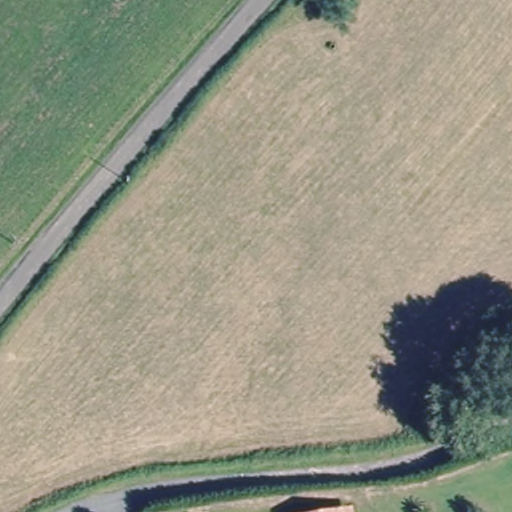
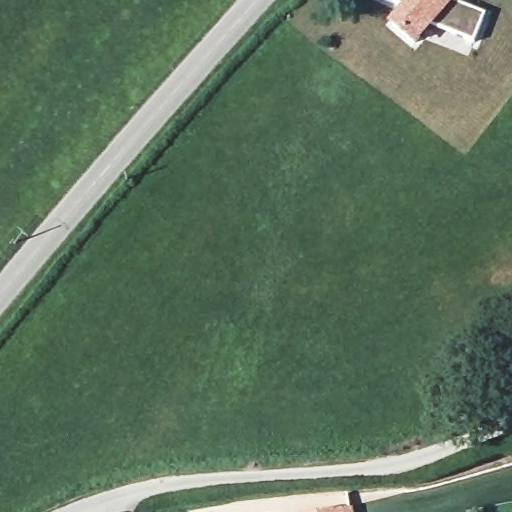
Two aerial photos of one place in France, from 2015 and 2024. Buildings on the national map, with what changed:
new [(485,15),(473,42),(434,27),(415,48),(390,24),(404,7),(388,0),(459,0),(455,4),(485,15)]
new [(354,512),(331,512),(353,508),(354,512)]

